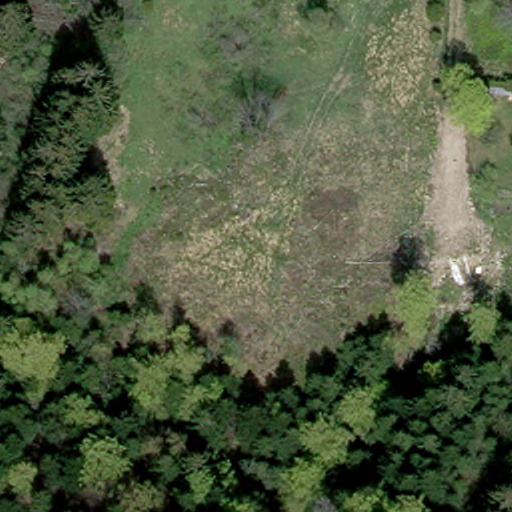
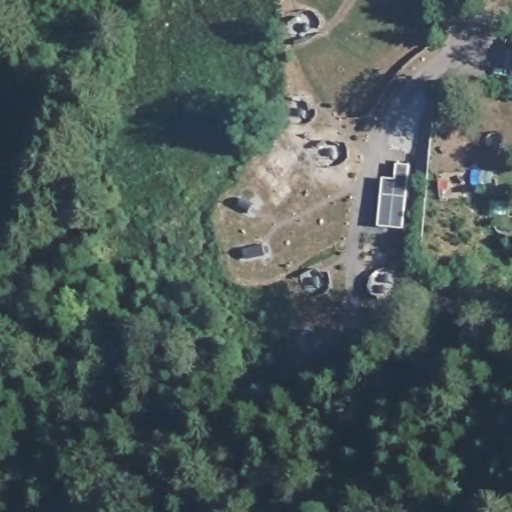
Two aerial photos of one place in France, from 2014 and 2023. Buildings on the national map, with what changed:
new [(395,178),(395,162),(410,164),(403,229),(377,226),(382,178),(395,178)]

